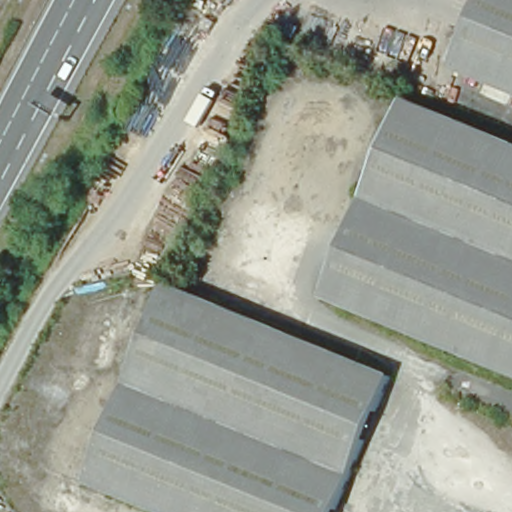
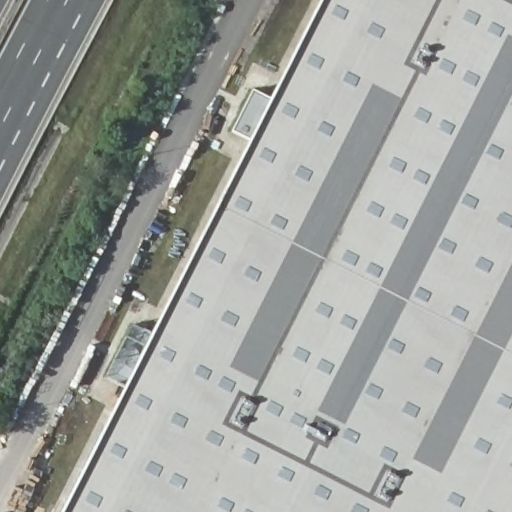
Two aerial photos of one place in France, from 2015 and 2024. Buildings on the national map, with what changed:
new [(311,0),(512,0),(512,512),(64,512),(100,421),(311,0)]
demolished [(478,0),(512,0),(512,92),(450,66),(478,0)]
demolished [(399,99),(512,146),(512,377),(319,295),(399,99)]
demolished [(385,381),(330,512),(149,512),(82,483),(166,288),(385,381)]

